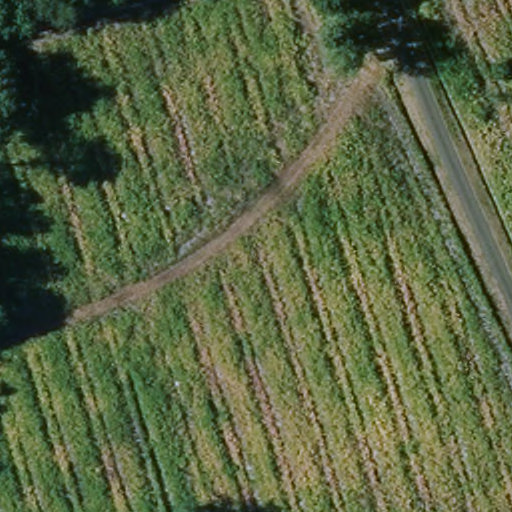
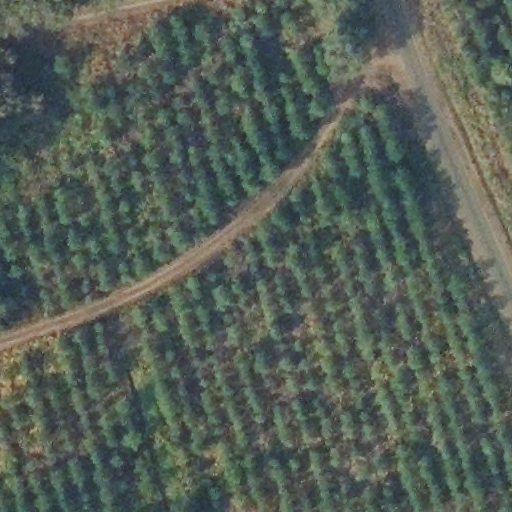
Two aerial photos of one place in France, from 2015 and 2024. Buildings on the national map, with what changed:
[]

